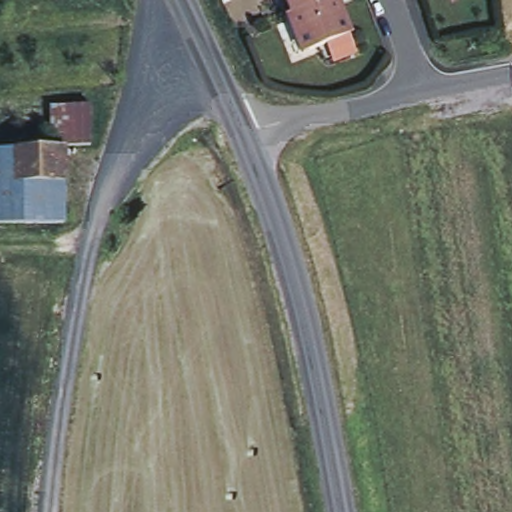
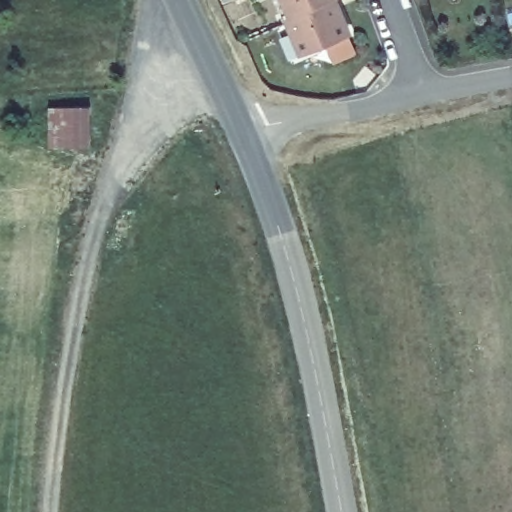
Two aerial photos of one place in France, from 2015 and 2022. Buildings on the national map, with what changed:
unchanged [(296,36),(287,15),(292,13),(287,0),(335,0),(349,36),(309,51),(302,54),(296,36)]
unchanged [(50,107),(90,105),(90,146),(50,147),(50,119),(50,107)]
demolished [(64,224),(0,225),(0,151),(62,149),(64,224)]

